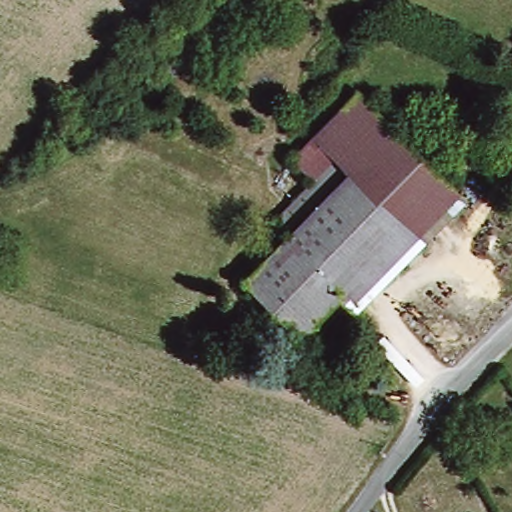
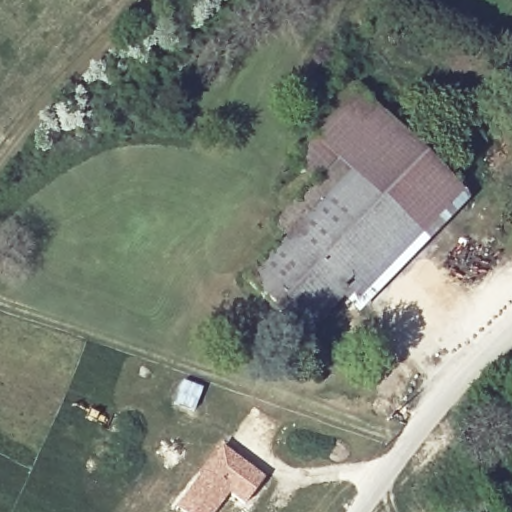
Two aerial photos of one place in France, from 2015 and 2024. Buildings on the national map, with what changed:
unchanged [(345,295),(302,336),(245,277),(285,238),(354,173),(321,139),(364,98),(455,190),(410,233),(345,295)]
unchanged [(314,183),(294,162),(321,139),(354,173),(285,238),(272,224),(314,183)]
unchanged [(455,190),(466,201),(422,244),(410,233),(455,190)]
unchanged [(427,249),(362,311),(345,295),(410,233),(422,244),(427,249)]
new [(181,379),(204,388),(194,412),(172,404),(181,379)]
new [(266,477),(245,505),(230,494),(215,512),(182,512),(175,506),(222,445),(266,477)]

